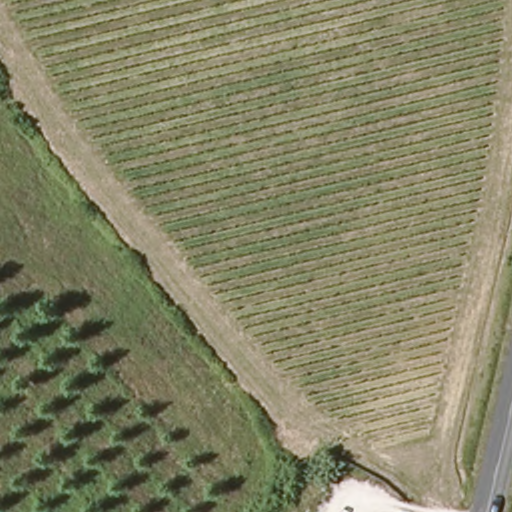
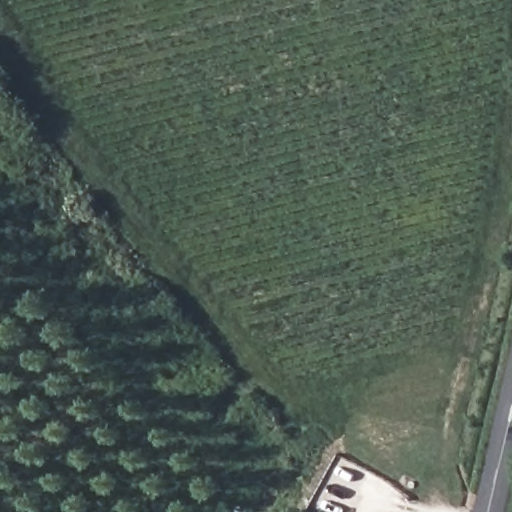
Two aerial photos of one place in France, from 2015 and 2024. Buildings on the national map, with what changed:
unchanged [(434,512),(406,512),(412,500),(434,512)]

